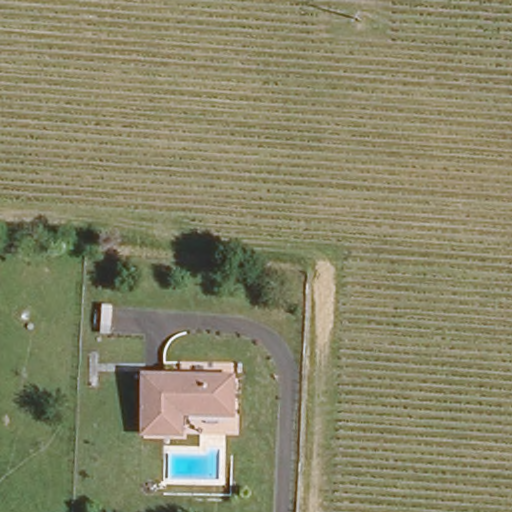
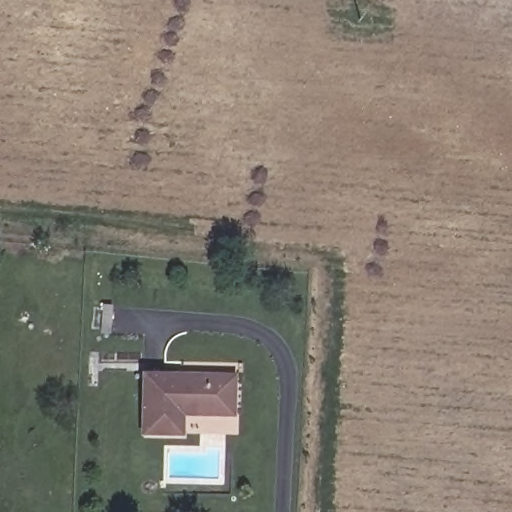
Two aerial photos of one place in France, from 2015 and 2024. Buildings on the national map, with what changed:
unchanged [(230,376),(230,418),(183,418),(183,438),(143,437),(145,377),(230,376)]

